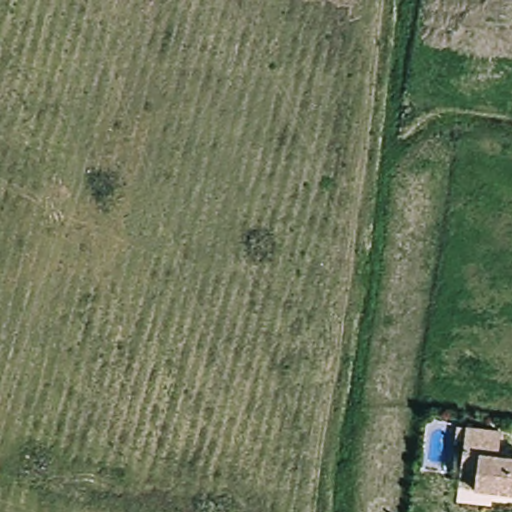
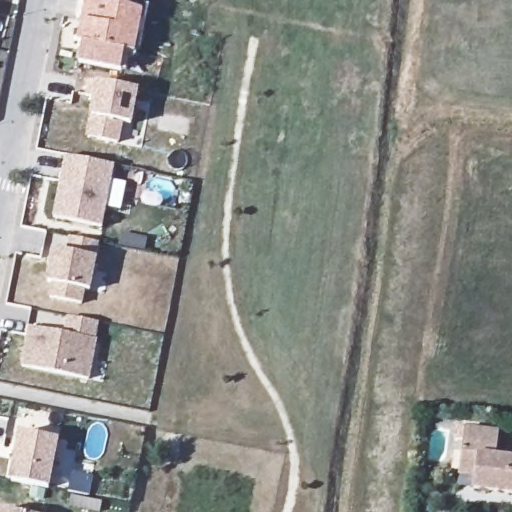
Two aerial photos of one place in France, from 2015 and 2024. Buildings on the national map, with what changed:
new [(83,26),(88,27),(93,1),(144,16),(135,59),(125,56),(120,76),(79,67),(83,50),(78,48),(83,26)]
new [(90,86),(139,95),(132,130),(123,128),(119,149),(90,143),(97,104),(87,102),(90,86)]
new [(65,160),(113,170),(101,231),(52,221),(65,160)]
new [(97,257),(98,258),(92,290),(86,290),(82,304),(49,297),(51,283),(45,282),(52,250),(64,253),(69,237),(99,242),(97,257)]
new [(30,327),(65,334),(67,317),(99,325),(89,378),(20,366),(30,327)]
unchanged [(464,456),(468,428),(502,432),(498,457),(512,459),(512,495),(476,490),(478,475),(462,473),(464,456)]
new [(60,441),(52,491),(10,482),(20,432),(60,441)]
new [(1,511),(7,512),(1,512),(1,511)]

